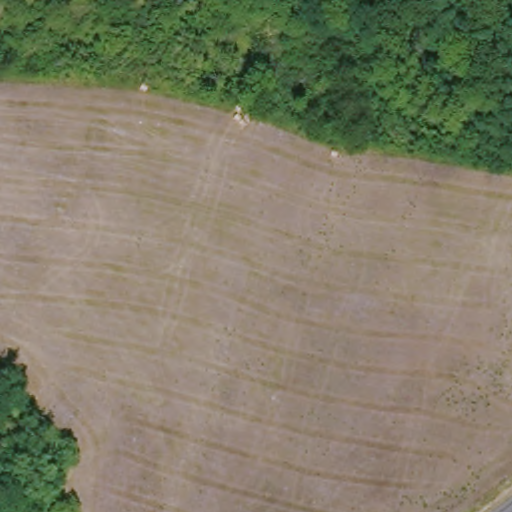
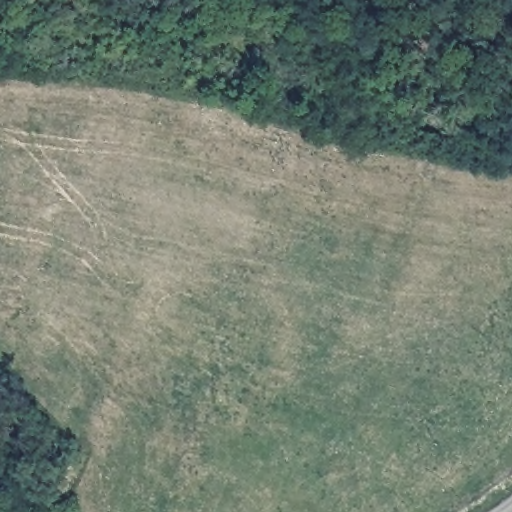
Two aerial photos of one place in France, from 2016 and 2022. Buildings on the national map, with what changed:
[]

